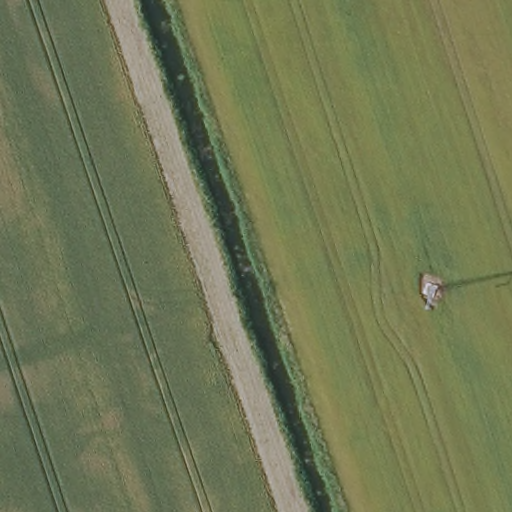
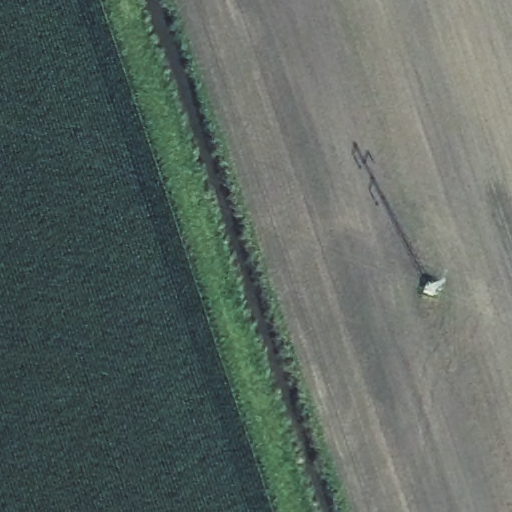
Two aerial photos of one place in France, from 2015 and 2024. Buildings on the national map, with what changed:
[]

